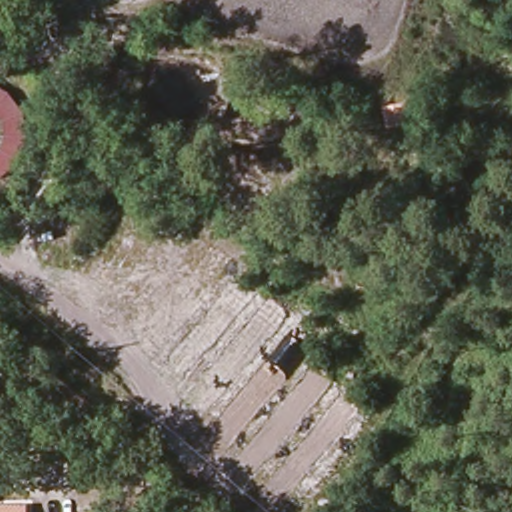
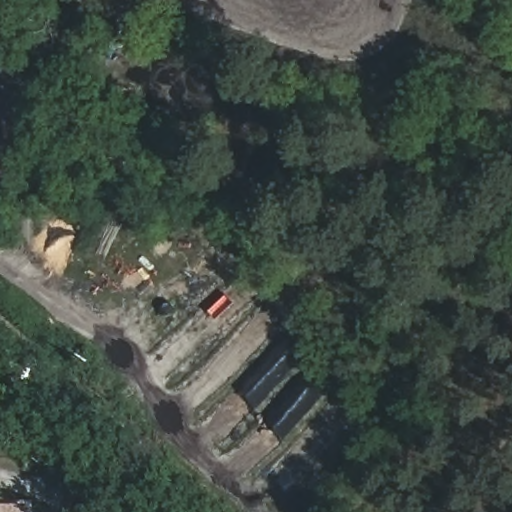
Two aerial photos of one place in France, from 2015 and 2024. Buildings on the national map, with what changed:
unchanged [(5,89),(8,90),(10,93),(13,95),(15,98),(16,100),(19,103),(20,106),(21,109),(23,112),(24,115),(25,119),(25,122),(26,125),(26,129),(25,131),(25,135),(24,139),(24,141),(22,144),(21,148),(20,151),(18,154),(16,156),(14,159),(11,161),(9,164),(6,166),(4,168),(1,169),(0,170),(0,85),(2,87),(5,89)]
unchanged [(25,512),(0,512),(0,507),(25,507),(25,512)]

